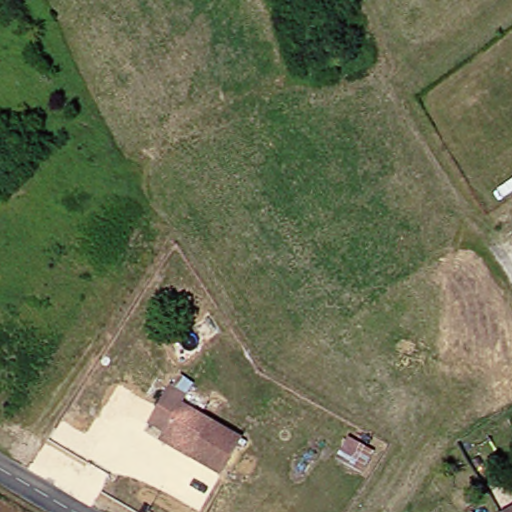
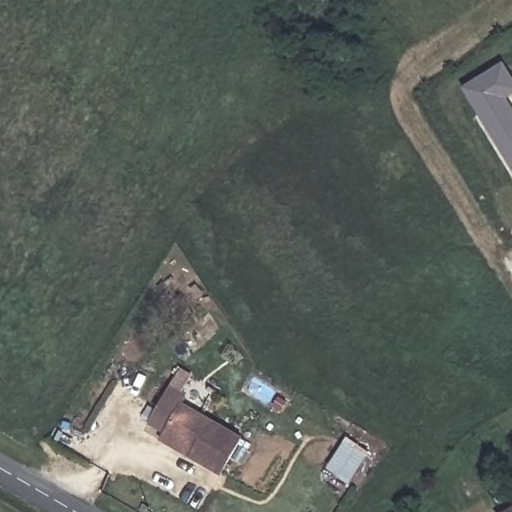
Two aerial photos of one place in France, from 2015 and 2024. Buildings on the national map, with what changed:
new [(512,78),(512,95),(507,98),(503,101),(512,116),(512,171),(499,149),(502,148),(482,114),(479,115),(462,87),(503,62),(507,69),(512,78)]
unchanged [(168,433),(169,431),(154,422),(175,387),(190,396),(186,404),(246,440),(226,474),(194,455),(166,438),(168,433)]

